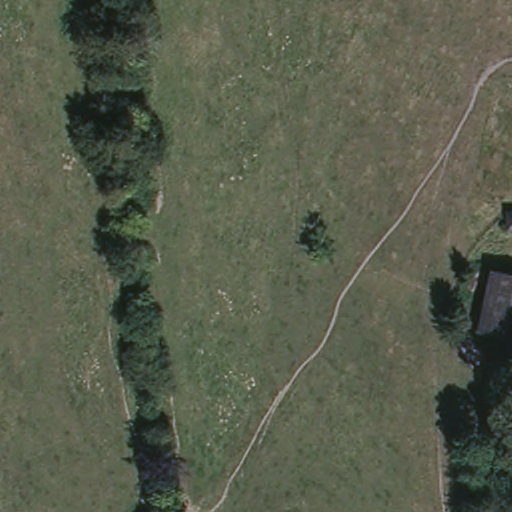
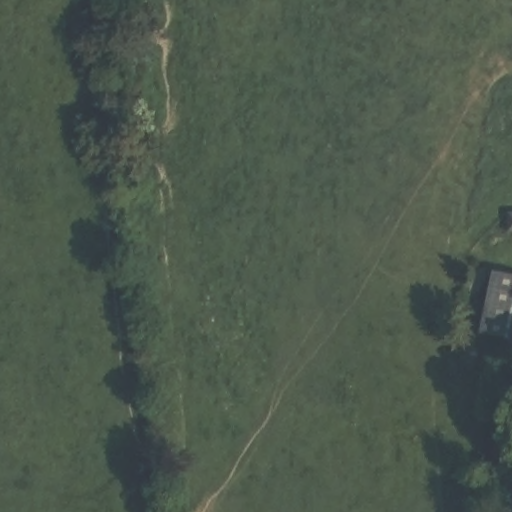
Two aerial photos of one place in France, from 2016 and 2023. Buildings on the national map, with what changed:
unchanged [(512,274),(512,334),(477,328),(488,270),(512,274)]

